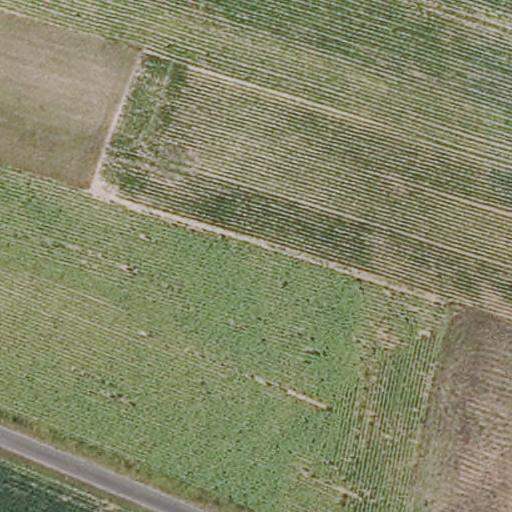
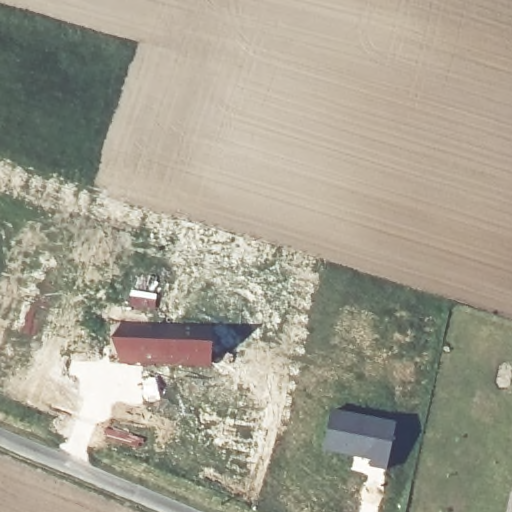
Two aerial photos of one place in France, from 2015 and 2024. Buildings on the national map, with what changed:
new [(131,288),(158,293),(155,312),(128,310),(131,288)]
new [(116,339),(151,337),(152,324),(214,327),(211,368),(118,362),(111,340),(116,339)]
new [(331,408),(397,423),(387,471),(369,467),(370,462),(323,451),(331,408)]

